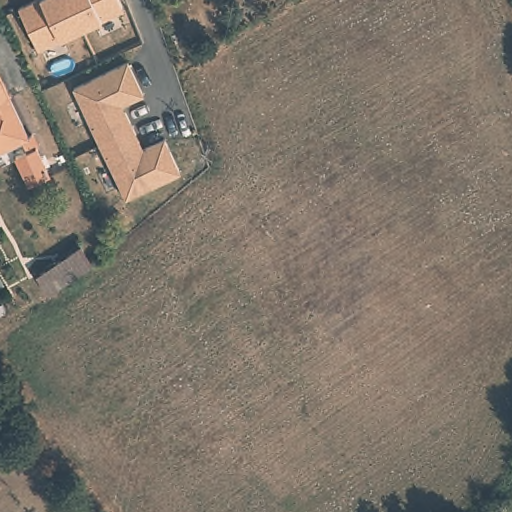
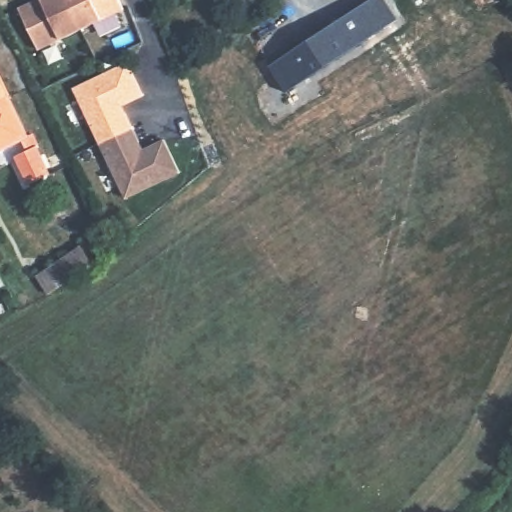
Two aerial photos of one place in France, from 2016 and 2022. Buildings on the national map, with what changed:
unchanged [(41,47),(24,5),(34,0),(126,0),(130,8),(41,47)]
new [(370,0),(385,0),(396,19),(287,92),(269,66),(370,0)]
unchanged [(147,90),(121,102),(125,110),(129,108),(142,138),(138,140),(141,147),(167,136),(183,170),(126,196),(76,83),(132,57),(147,90)]
unchanged [(31,185),(13,148),(0,154),(0,60),(56,174),(31,185)]

